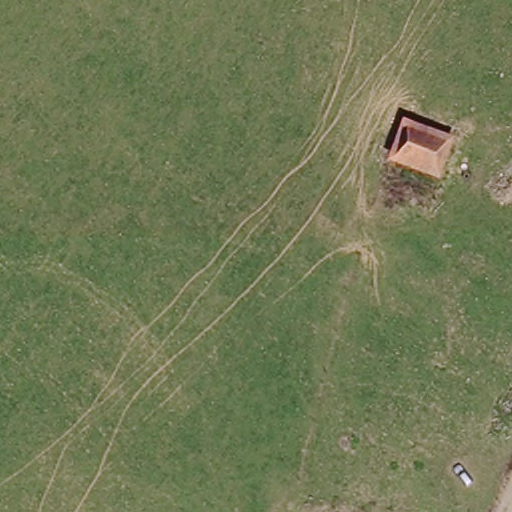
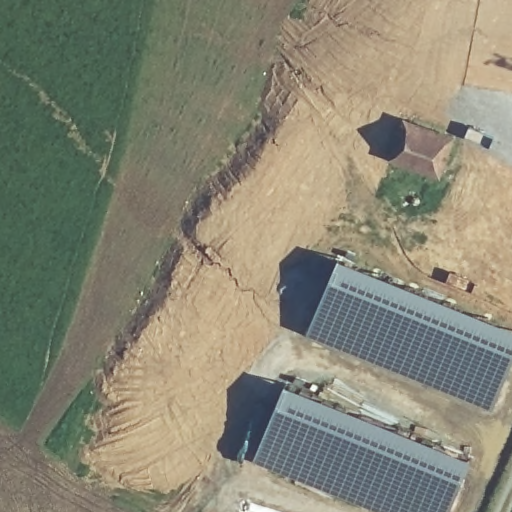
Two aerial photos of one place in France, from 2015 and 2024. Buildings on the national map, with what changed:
unchanged [(395,155),(409,120),(455,136),(441,173),(395,155)]
new [(381,273),(512,328),(512,366),(492,411),(380,365),(305,331),(338,254),(381,273)]
new [(473,459),(451,512),(381,512),(252,457),(285,380),(473,459)]

